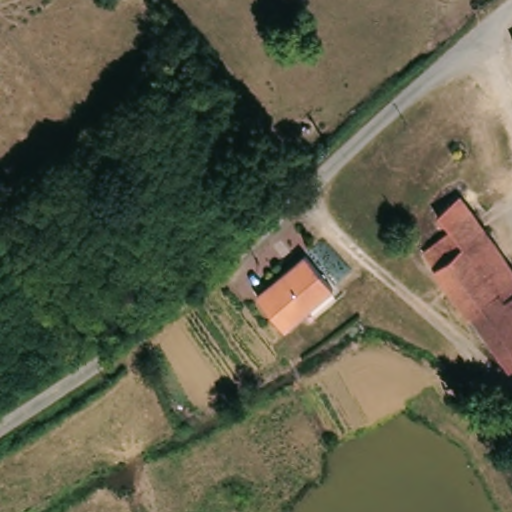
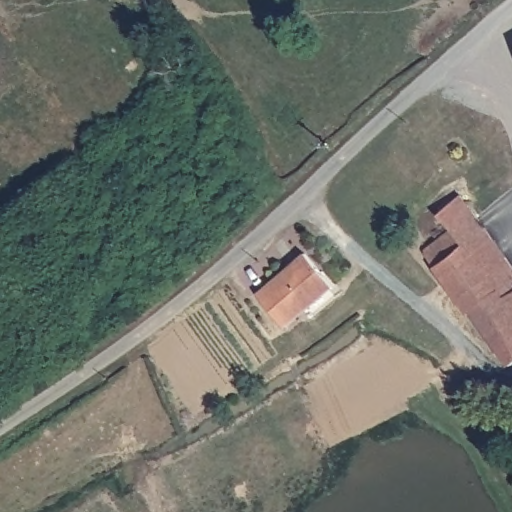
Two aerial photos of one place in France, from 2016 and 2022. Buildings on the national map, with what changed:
unchanged [(475,199),(512,256),(512,365),(510,367),(473,318),(467,317),(425,254),(462,229),(452,213),(475,199)]
unchanged [(307,258),(331,285),(285,328),(262,301),(307,258)]

